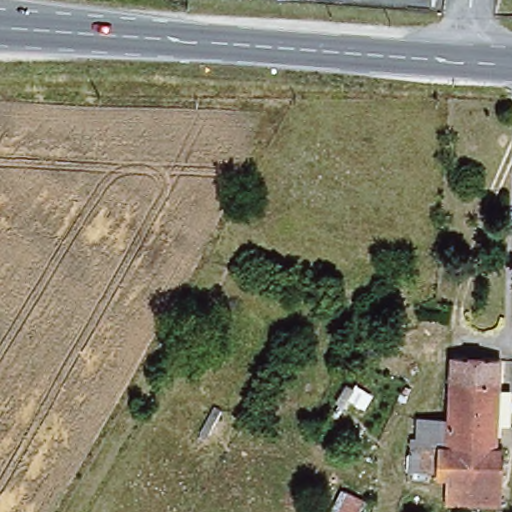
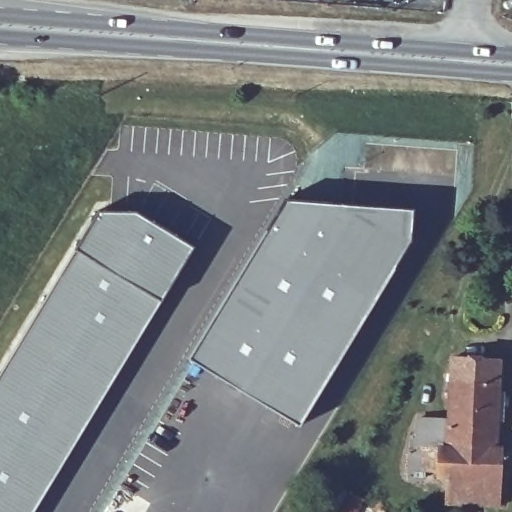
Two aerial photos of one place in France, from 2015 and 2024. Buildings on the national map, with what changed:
new [(280,201),(408,207),(406,238),(301,425),(189,362),(280,201)]
new [(100,206),(154,217),(194,242),(33,512),(0,512),(0,375),(100,206)]
unchanged [(495,444),(502,445),(500,481),(498,507),(471,507),(470,505),(445,504),(445,478),(437,478),(438,472),(423,471),(423,476),(407,477),(406,449),(415,449),(417,417),(446,417),(450,357),(500,359),(495,444)]
unchanged [(329,512),(340,490),(363,497),(356,512),(329,512)]

